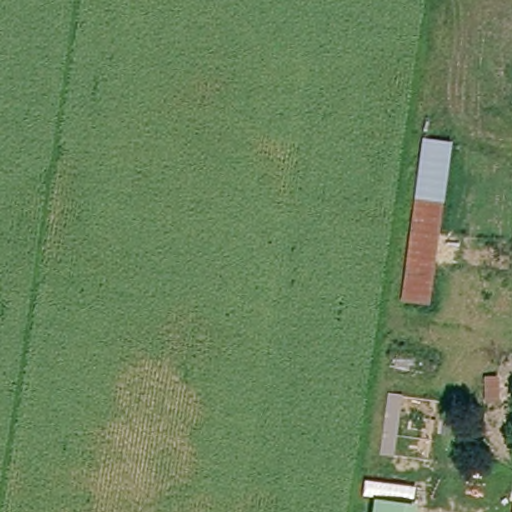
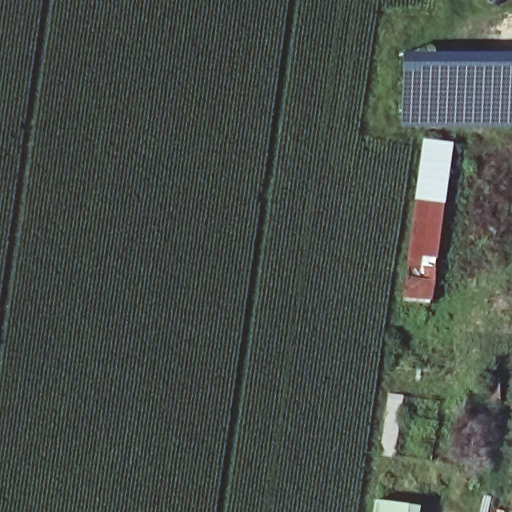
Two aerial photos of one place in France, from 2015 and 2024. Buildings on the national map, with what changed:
new [(512,49),(512,122),(397,122),(397,49),(512,49)]
unchanged [(430,307),(401,303),(421,142),(450,146),(430,307)]
unchanged [(411,506),(410,512),(379,512),(382,501),(411,506)]

